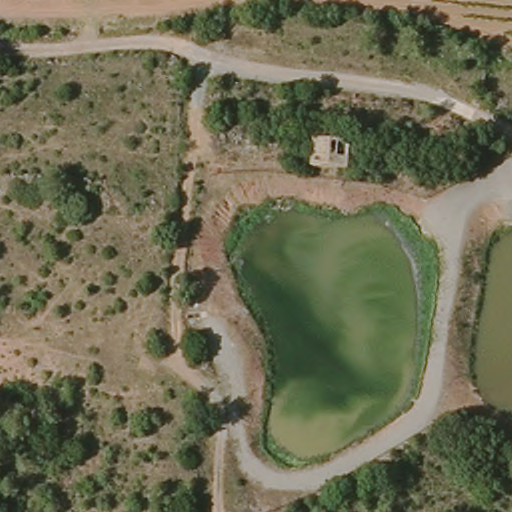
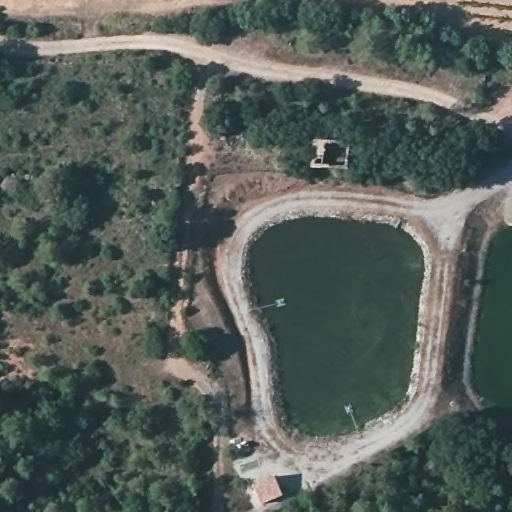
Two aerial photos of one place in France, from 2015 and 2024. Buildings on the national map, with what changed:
unchanged [(350,165),(321,167),(321,154),(321,141),(348,140),(350,165)]

